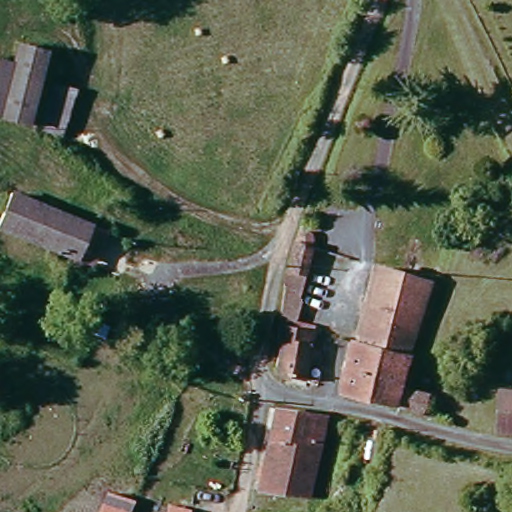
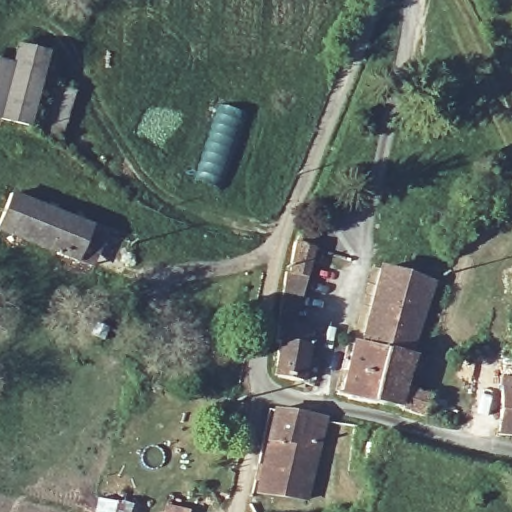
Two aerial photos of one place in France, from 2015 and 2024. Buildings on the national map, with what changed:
unchanged [(45,55),(39,75),(21,124),(0,116),(0,103),(12,67),(20,47),(45,55)]
unchanged [(0,103),(0,63),(12,67),(0,103)]
unchanged [(39,75),(79,89),(61,136),(21,124),(39,75)]
new [(216,104),(250,116),(221,190),(189,180),(216,104)]
unchanged [(79,256),(0,227),(0,218),(10,191),(91,222),(79,256)]
unchanged [(312,324),(302,375),(279,373),(275,373),(282,340),(277,338),(298,237),(311,237),(314,251),(297,320),(312,324)]
unchanged [(377,268),(427,284),(413,332),(406,355),(380,349),(357,343),(377,268)]
unchanged [(380,349),(368,400),(339,392),(351,342),(357,343),(380,349)]
unchanged [(398,385),(426,396),(420,415),(386,403),(368,400),(380,349),(406,355),(398,385)]
unchanged [(497,433),(506,378),(470,371),(475,351),(491,355),(508,360),(507,372),(512,373),(512,435),(497,433)]
unchanged [(315,499),(262,492),(268,441),(276,408),(327,415),(315,499)]
unchanged [(131,512),(97,512),(105,491),(135,501),(131,512)]

